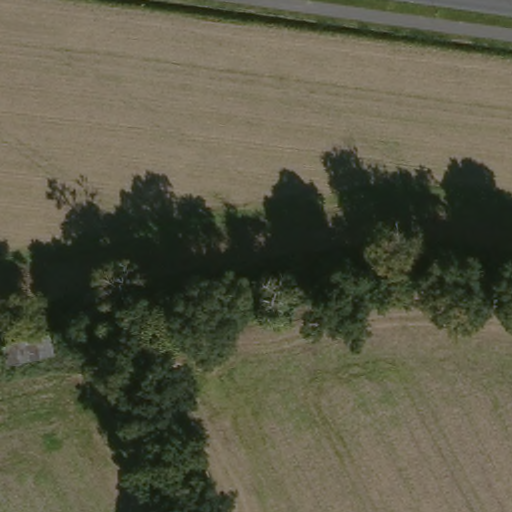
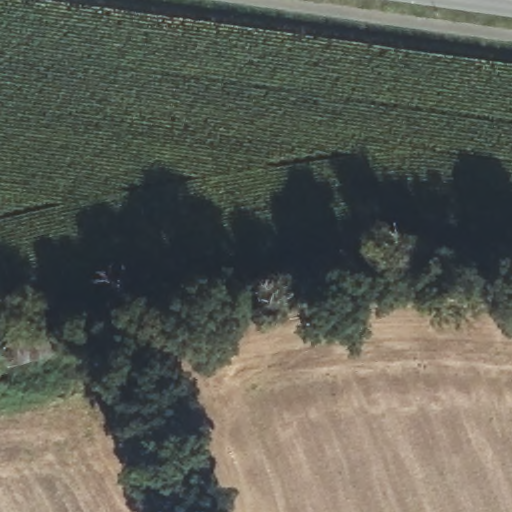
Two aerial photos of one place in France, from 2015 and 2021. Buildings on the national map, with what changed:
unchanged [(5,367),(0,349),(0,347),(45,337),(50,356),(5,367)]
unchanged [(208,478),(214,499),(198,504),(190,485),(208,478)]

